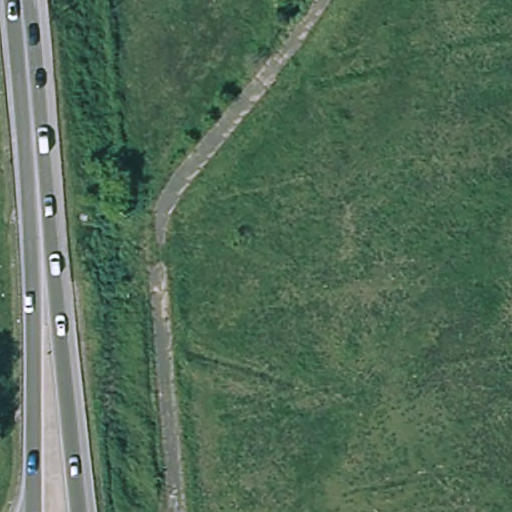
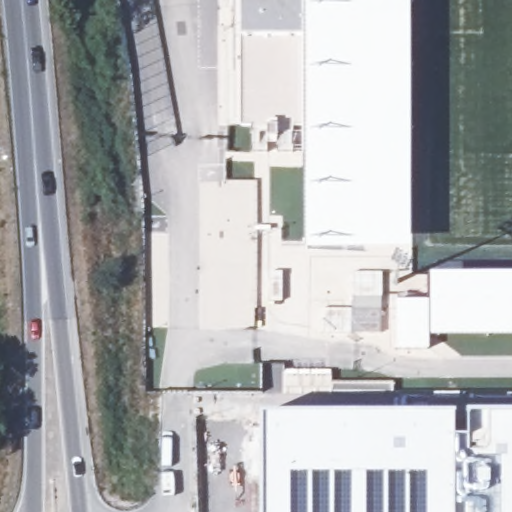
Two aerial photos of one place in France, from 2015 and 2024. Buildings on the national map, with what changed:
new [(279,136),(279,138),(268,138),(268,134),(253,134),(254,127),(242,126),(243,36),(242,0),(410,0),(410,250),(307,252),(307,137),(279,136)]
new [(430,350),(397,351),(398,299),(430,302),(430,274),(512,274),(512,338),(431,337),(430,350)]
new [(455,439),(467,439),(467,413),(512,413),(512,512),(261,512),(261,415),(455,413),(455,439)]

